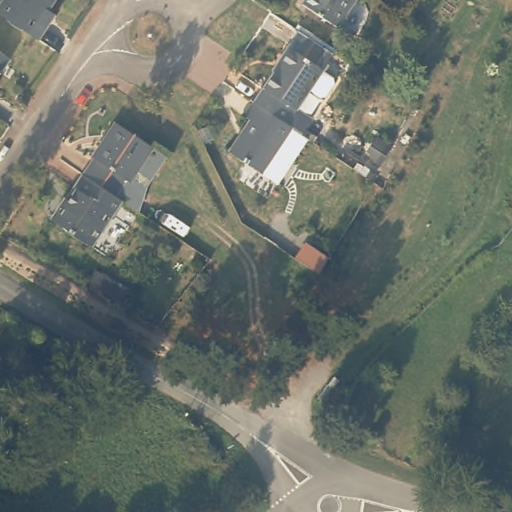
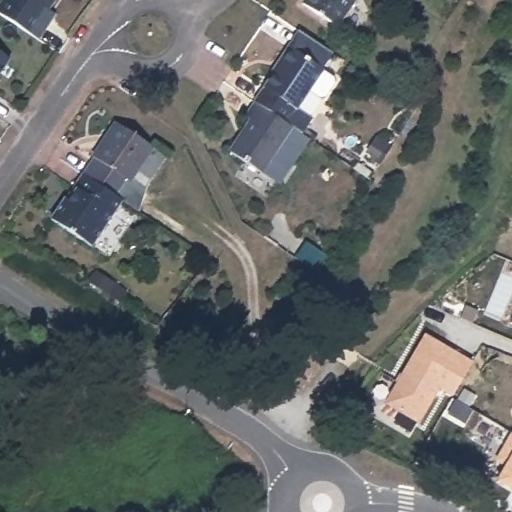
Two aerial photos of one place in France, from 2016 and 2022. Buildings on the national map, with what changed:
unchanged [(39,39),(0,13),(0,0),(54,0),(51,5),(58,11),(48,26),(39,39)]
unchanged [(297,2),(298,0),(353,0),(335,26),(297,2)]
unchanged [(10,57),(0,71),(0,51),(10,57)]
unchanged [(245,109),(271,71),(270,66),(280,52),(317,76),(315,80),(325,86),(323,89),(329,93),(322,103),(310,104),(302,99),(290,118),(305,128),(296,143),(285,135),(245,109)]
unchanged [(254,184),(219,160),(239,127),(236,124),(245,109),(285,135),(254,184)]
unchanged [(137,195),(121,185),(110,202),(73,177),(84,160),(80,158),(105,120),(145,149),(161,159),(137,195)]
unchanged [(393,138),(381,158),(368,149),(381,130),(393,138)]
unchanged [(110,202),(114,204),(84,249),(39,223),(55,197),(62,202),(69,192),(65,189),(73,177),(110,202)]
new [(439,390),(419,423),(383,404),(425,333),(474,360),(452,397),(439,390)]
new [(508,459),(498,454),(511,434),(512,434),(512,492),(495,481),(508,459)]

